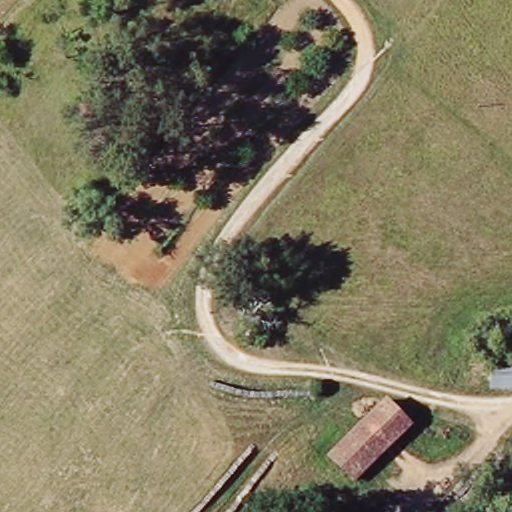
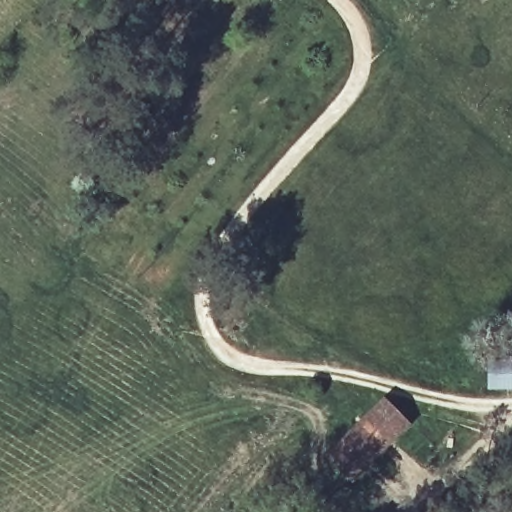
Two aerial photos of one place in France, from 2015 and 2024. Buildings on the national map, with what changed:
unchanged [(492,388),(492,367),(512,367),(512,387),(506,387),(492,388)]
unchanged [(356,480),(332,456),(388,399),(412,422),(356,480)]

